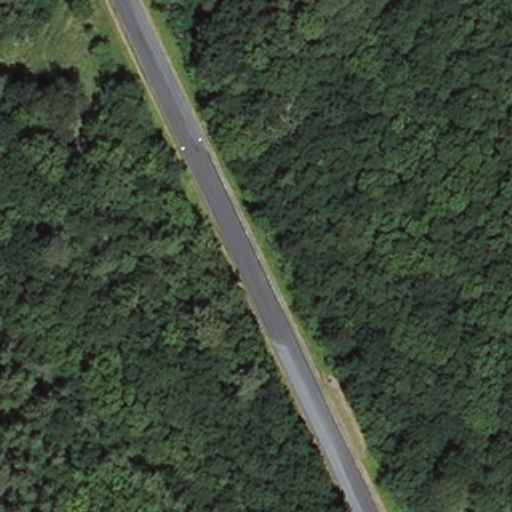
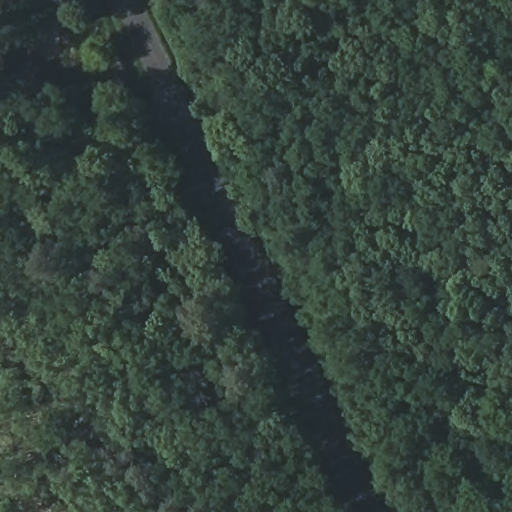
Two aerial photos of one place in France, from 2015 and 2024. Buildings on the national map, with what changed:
[]

